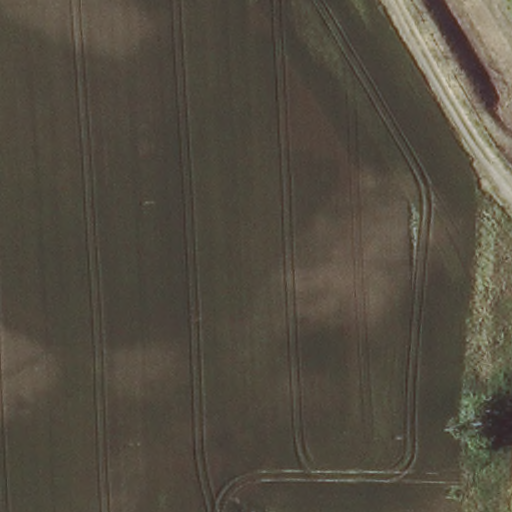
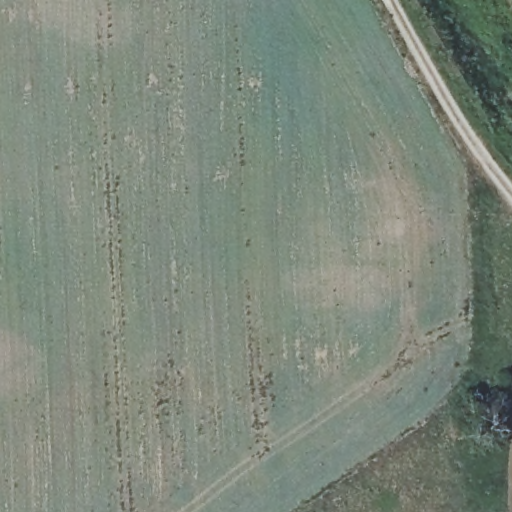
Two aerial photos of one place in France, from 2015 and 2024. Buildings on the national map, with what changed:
[]

